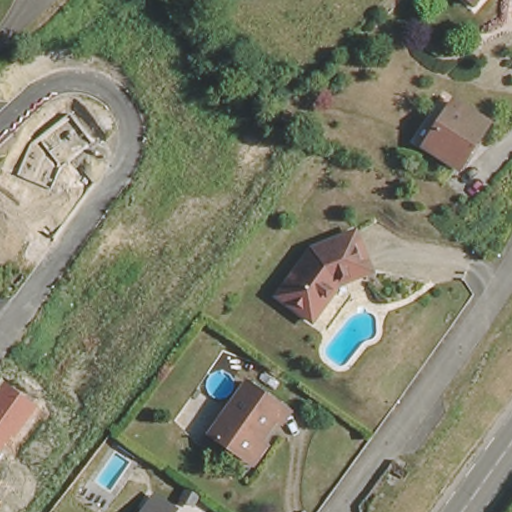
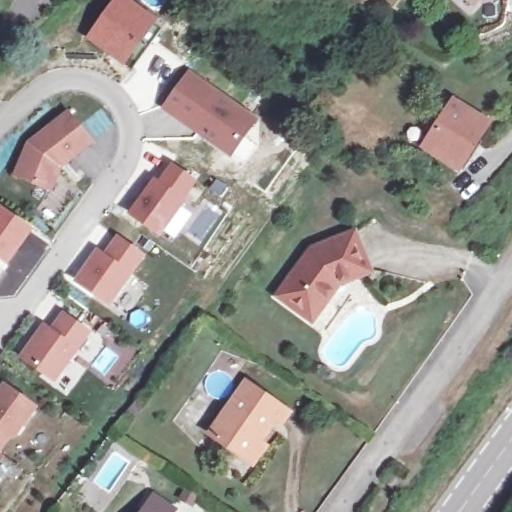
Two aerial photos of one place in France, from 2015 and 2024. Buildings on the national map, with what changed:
new [(133,0),(158,18),(124,66),(84,38),(112,0),(133,0)]
unchanged [(468,0),(475,0),(472,4),(468,0)]
new [(161,110),(189,71),(189,70),(260,120),(232,159),(161,110)]
unchanged [(423,144),(454,99),(489,121),(459,167),(423,144)]
new [(30,150),(68,118),(92,147),(61,173),(52,195),(17,181),(30,150)]
new [(154,177),(159,181),(172,163),(198,181),(187,201),(188,202),(161,238),(128,214),(154,177)]
new [(35,229),(7,267),(0,261),(0,203),(35,229)]
new [(146,256),(110,308),(74,282),(98,248),(104,253),(117,235),(146,256)]
unchanged [(339,286),(309,323),(277,298),(304,261),(309,254),(348,241),(360,238),(365,258),(372,277),(339,286)]
new [(57,384),(20,358),(44,323),(51,328),(62,312),(92,333),(57,384)]
unchanged [(253,469),(247,464),(209,437),(249,382),(293,415),(284,427),(277,422),(264,440),(270,445),(253,469)]
unchanged [(39,407),(0,461),(0,391),(6,383),(39,407)]
unchanged [(154,503),(167,512),(146,512),(154,503)]

